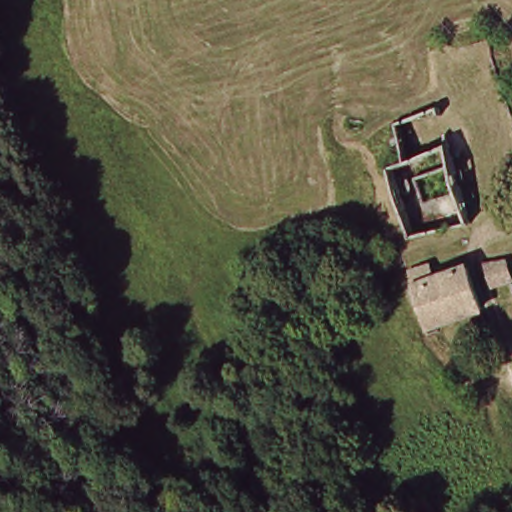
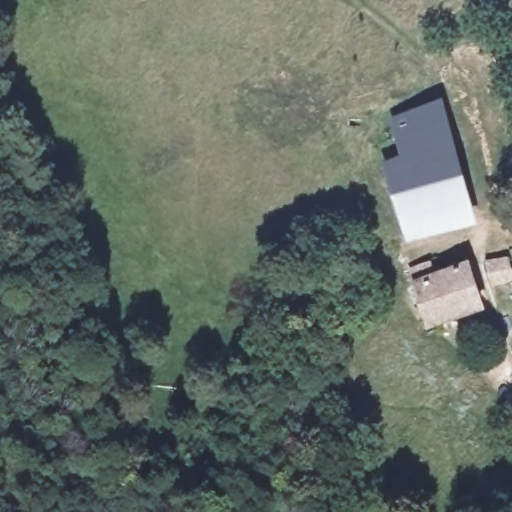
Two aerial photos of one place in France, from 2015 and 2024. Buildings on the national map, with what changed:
new [(399,157),(387,117),(443,98),(466,175),(391,196),(381,162),(399,157)]
new [(466,175),(479,226),(406,243),(391,196),(466,175)]
unchanged [(512,281),(491,286),(485,262),(512,257),(512,281)]
unchanged [(409,283),(404,265),(424,262),(428,279),(464,269),(478,315),(421,329),(409,283)]

